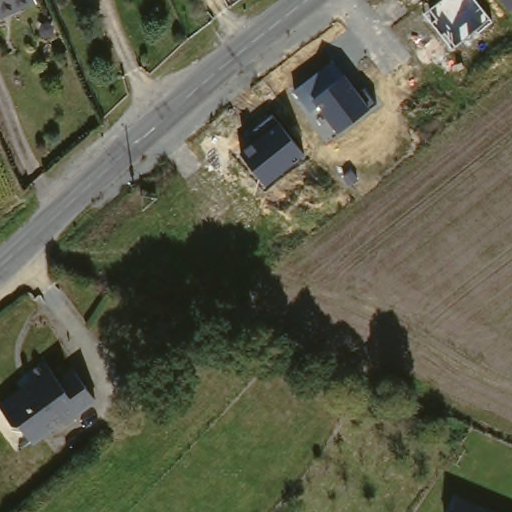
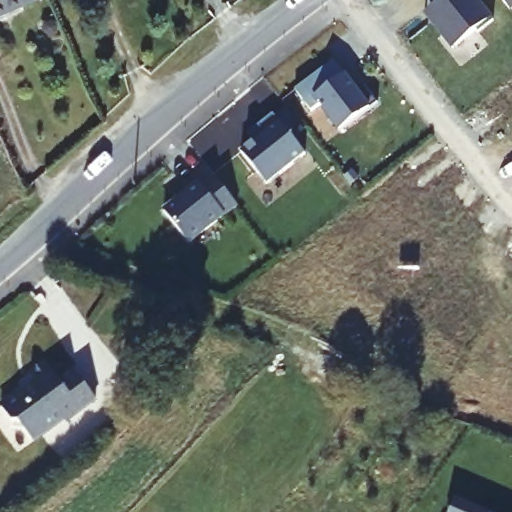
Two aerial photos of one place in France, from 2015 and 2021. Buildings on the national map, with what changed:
unchanged [(21,7),(0,15),(0,0),(37,0),(21,7)]
unchanged [(425,12),(440,0),(476,0),(492,21),(453,49),(425,12)]
unchanged [(512,8),(508,10),(501,0),(512,0),(512,8)]
unchanged [(296,90),(334,61),(344,76),(346,75),(358,92),(366,87),(377,103),(370,108),(337,132),(320,105),(311,111),(296,90)]
unchanged [(240,151),(257,140),(252,132),(275,114),(282,124),(305,156),(266,184),(240,151)]
new [(199,185),(202,189),(215,179),(236,207),(187,245),(162,213),(199,185)]
unchanged [(185,346),(171,363),(156,351),(171,334),(185,346)]
unchanged [(35,384),(31,377),(45,369),(55,386),(76,374),(99,412),(66,430),(63,426),(30,444),(16,421),(7,426),(0,414),(0,403),(35,384)]
unchanged [(496,512),(448,512),(455,493),(496,512)]

